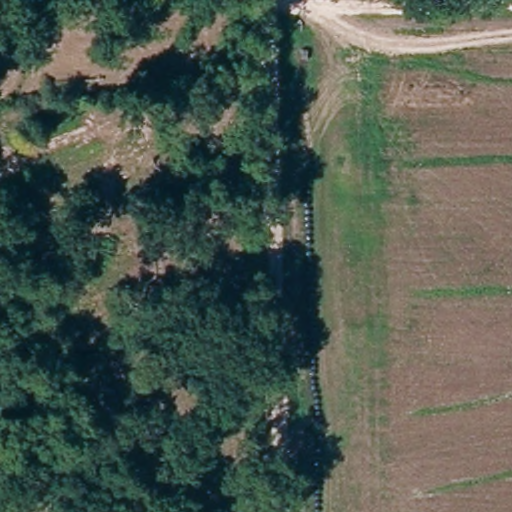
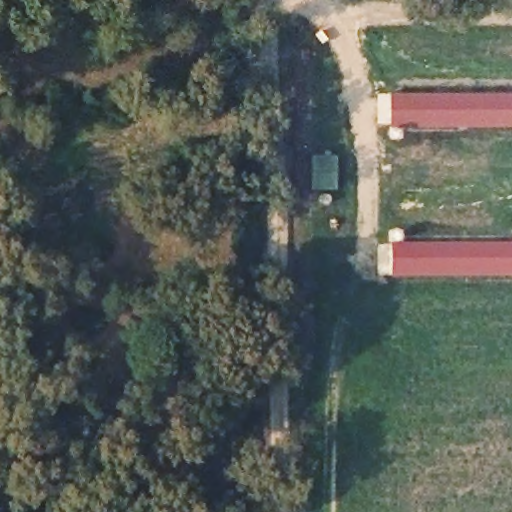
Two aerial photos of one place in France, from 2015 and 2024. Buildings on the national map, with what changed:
new [(512,125),(390,126),(389,91),(512,91),(512,125)]
new [(390,241),(512,241),(512,274),(390,275),(390,241)]

